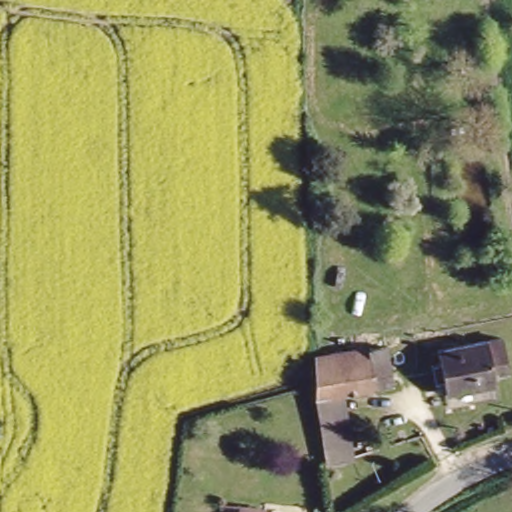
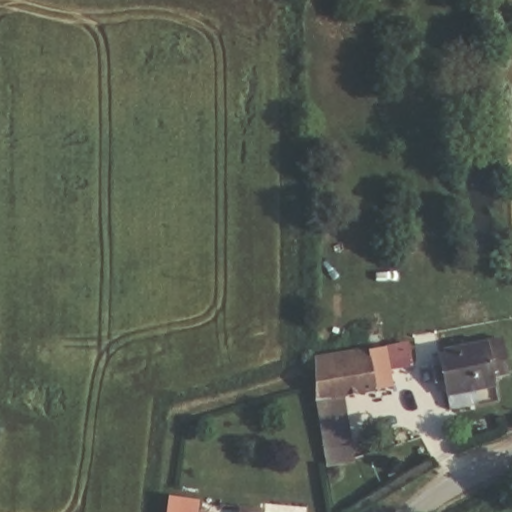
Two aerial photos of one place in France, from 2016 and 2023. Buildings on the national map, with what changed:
unchanged [(503,333),(510,367),(496,370),(497,379),(448,389),(445,375),(437,377),(433,359),(441,357),(439,345),(503,333)]
unchanged [(348,391),(319,394),(316,374),(315,353),(332,351),(332,353),(350,352),(349,349),(388,341),(395,382),(348,391)]
unchanged [(356,459),(330,462),(319,394),(348,391),(356,459)]
new [(201,512),(164,512),(166,495),(202,503),(201,512)]
unchanged [(261,504),(261,512),(234,512),(235,503),(261,504)]

